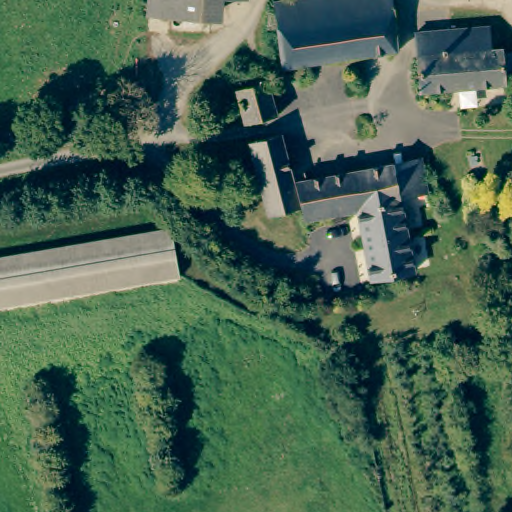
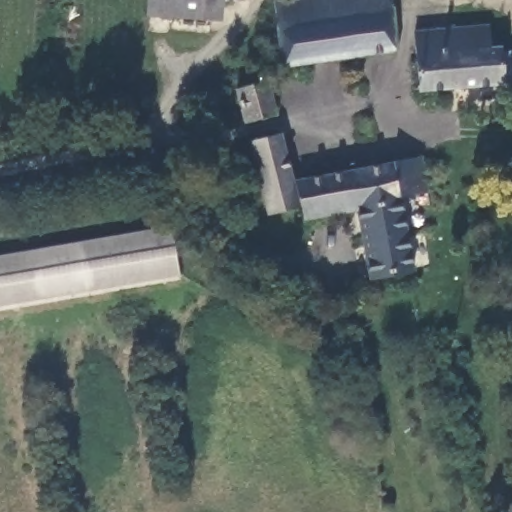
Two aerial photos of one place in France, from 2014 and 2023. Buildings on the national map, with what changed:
unchanged [(147,20),(148,0),(212,0),(209,24),(147,20)]
unchanged [(287,63),(280,0),(393,0),(398,50),(287,63)]
unchanged [(412,35),(488,25),(492,45),(505,43),(506,50),(512,49),(512,79),(419,91),(412,35)]
unchanged [(266,69),(270,92),(265,93),(271,120),(237,127),(236,121),(225,123),(222,111),(229,103),(228,96),(245,93),(241,73),(252,71),(266,69)]
unchanged [(279,135),(294,205),(262,213),(257,214),(247,169),(252,168),(246,142),(279,135)]
unchanged [(417,160),(429,207),(401,213),(391,166),(417,160)]
unchanged [(297,186),(391,166),(401,213),(415,275),(372,284),(355,213),(305,224),(301,204),(297,186)]
unchanged [(169,224),(176,269),(0,299),(0,252),(169,224)]

